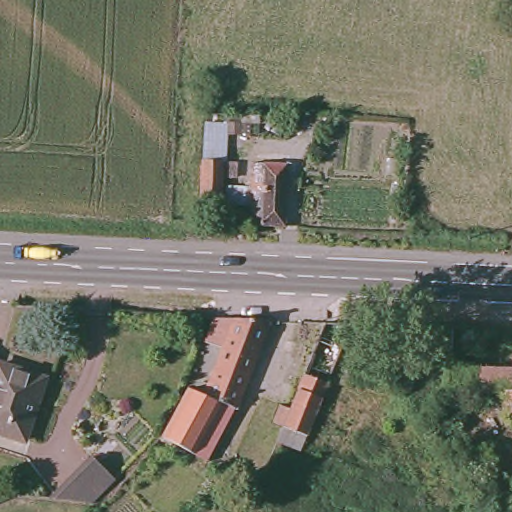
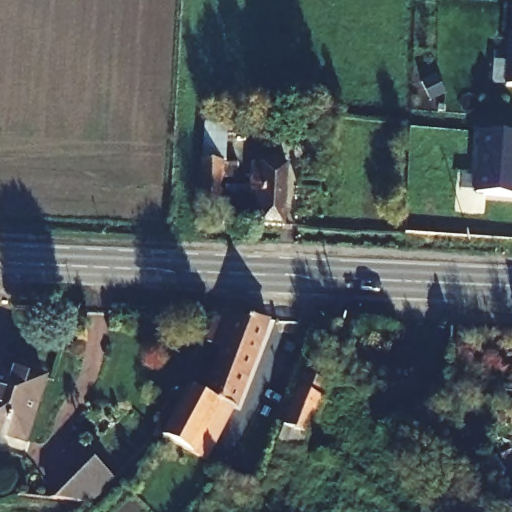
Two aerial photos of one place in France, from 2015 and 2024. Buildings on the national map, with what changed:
new [(512,86),(504,85),(509,32),(512,32),(512,86)]
new [(479,134),(512,136),(512,197),(474,194),(479,134)]
unchanged [(204,136),(235,137),(235,154),(233,154),(230,195),(200,194),(203,152),(204,136)]
unchanged [(247,228),(252,165),(288,168),(284,230),(247,228)]
unchanged [(220,404),(195,453),(167,439),(194,394),(190,392),(192,388),(208,396),(227,349),(208,342),(218,320),(238,321),(272,323),(239,411),(220,404)]
unchanged [(281,406),(282,407),(292,410),(325,325),(352,327),(327,389),(305,447),(302,452),(295,449),(290,447),(285,445),(280,443),(285,429),(273,424),(281,406)]
unchanged [(453,325),(512,327),(512,386),(493,386),(450,385),(453,339),(453,325)]
unchanged [(43,379),(25,442),(0,434),(0,365),(43,379)]
unchanged [(493,386),(512,386),(512,416),(510,417),(493,386)]
unchanged [(212,462),(195,453),(220,404),(239,411),(212,462)]
unchanged [(116,481),(92,503),(50,499),(93,457),(116,481)]

